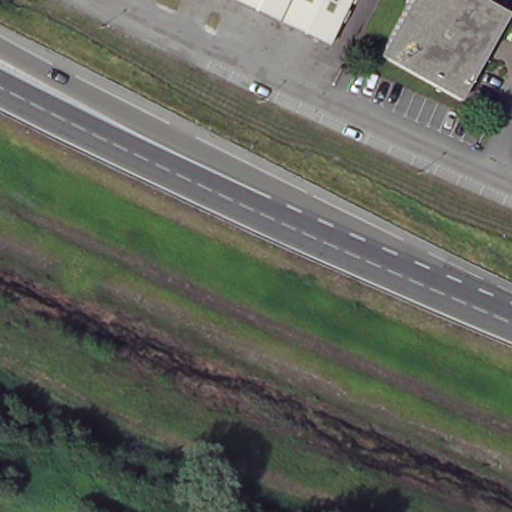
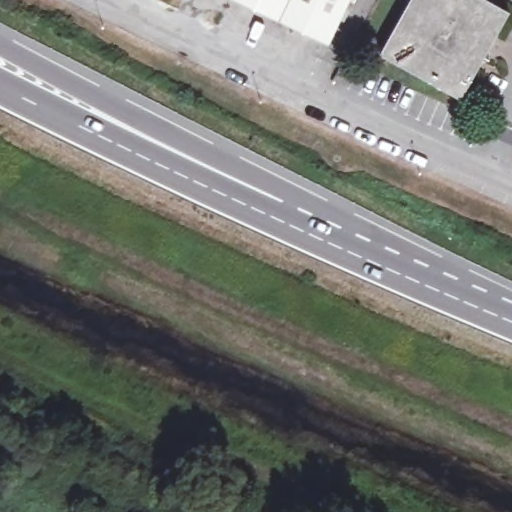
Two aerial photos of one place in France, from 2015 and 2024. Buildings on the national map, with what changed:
unchanged [(248,0),(349,0),(329,40),(248,0)]
unchanged [(466,98),(384,58),(412,0),(495,0),(511,8),(492,47),(497,55),(484,61),(466,98)]

